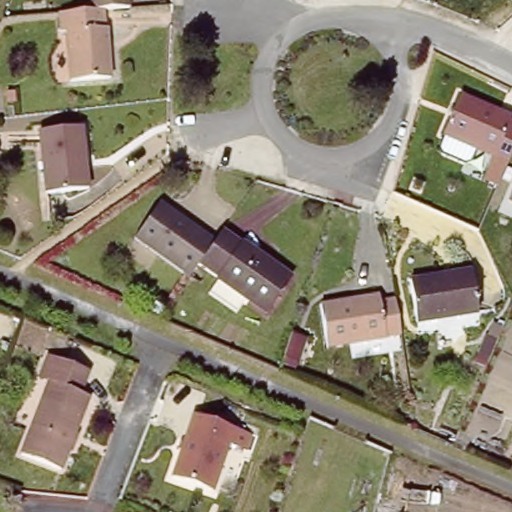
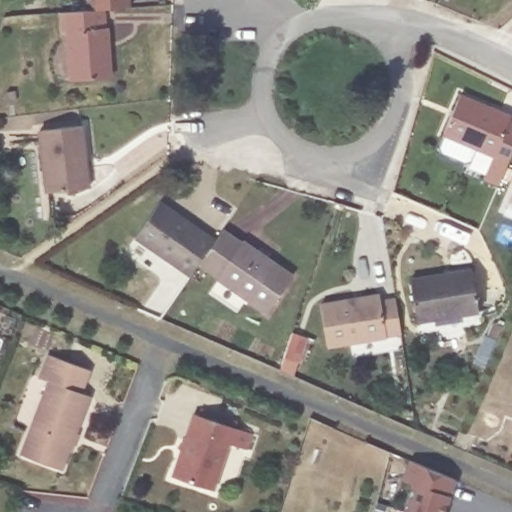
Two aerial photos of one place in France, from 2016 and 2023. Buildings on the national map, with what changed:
unchanged [(91,6),(91,0),(131,0),(131,3),(105,5),(91,6)]
unchanged [(106,22),(110,22),(112,73),(72,74),(70,28),(65,28),(64,9),(91,6),(105,5),(106,22)]
unchanged [(496,155),(445,133),(462,94),(512,115),(512,118),(511,121),(512,121),(512,159),(509,166),(495,160),(496,155)]
unchanged [(43,187),(40,124),(82,121),(87,184),(43,187)]
unchanged [(512,196),(512,199),(511,199),(512,196)]
unchanged [(135,237),(158,201),(214,239),(197,263),(189,275),(135,237)]
unchanged [(290,275),(266,309),(197,263),(214,239),(222,228),(290,275)]
unchanged [(467,269),(475,310),(412,321),(405,277),(467,269)]
unchanged [(325,344),(318,302),(377,293),(378,297),(392,297),(398,333),(325,344)]
unchanged [(290,334),(303,338),(296,360),(282,356),(290,334)]
unchanged [(35,377),(44,352),(92,369),(83,392),(92,396),(63,471),(18,453),(47,381),(35,377)]
unchanged [(197,412),(237,427),(214,490),(174,475),(197,412)]
new [(458,480),(448,512),(403,512),(418,463),(458,480)]

